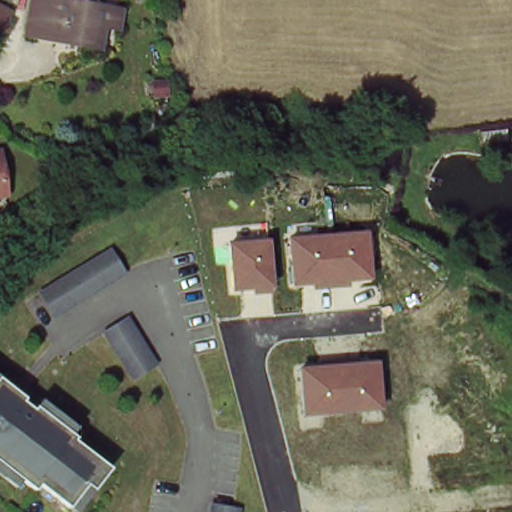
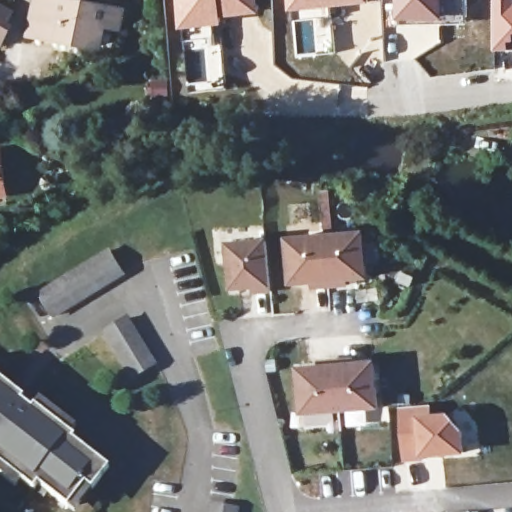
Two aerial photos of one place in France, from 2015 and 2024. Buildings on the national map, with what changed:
unchanged [(32,0),(85,0),(104,2),(120,4),(118,26),(101,25),(99,47),(27,40),(32,0)]
new [(223,19),(223,25),(178,30),(176,0),(259,0),(260,14),(223,19)]
new [(288,13),(287,0),(369,0),(369,4),(288,13)]
new [(394,22),(394,0),(446,0),(446,22),(394,22)]
new [(491,0),(512,0),(512,51),(491,52),(491,0)]
new [(15,11),(8,24),(13,26),(2,47),(0,46),(0,3),(15,11)]
unchanged [(171,102),(158,104),(156,89),(168,87),(171,102)]
unchanged [(5,185),(0,185),(0,147),(5,185)]
unchanged [(363,232),(365,279),(344,281),(345,287),(309,290),(308,284),(288,285),(286,237),(363,232)]
unchanged [(265,239),(267,287),(230,290),(226,241),(265,239)]
unchanged [(56,316),(43,293),(113,251),(127,275),(56,316)]
unchanged [(156,366),(133,380),(106,333),(129,320),(156,366)]
unchanged [(372,361),(375,411),(300,416),(295,367),(372,361)]
unchanged [(80,437),(78,440),(114,469),(96,490),(90,485),(72,507),(42,484),(38,490),(0,459),(0,381),(3,376),(30,397),(27,400),(38,408),(40,405),(80,437)]
new [(397,407),(430,405),(460,431),(460,453),(424,455),(423,463),(400,463),(397,407)]
unchanged [(240,512),(213,512),(215,503),(241,508),(240,512)]

